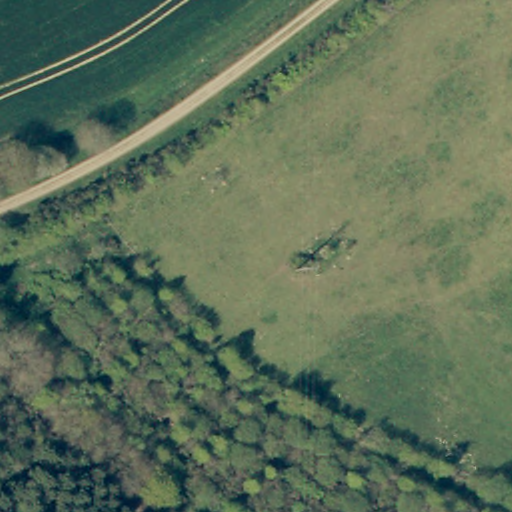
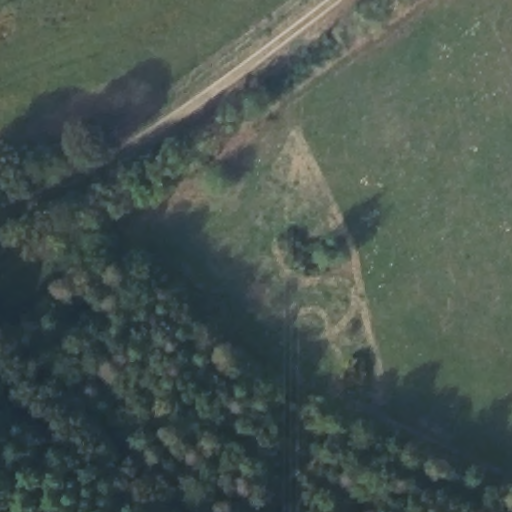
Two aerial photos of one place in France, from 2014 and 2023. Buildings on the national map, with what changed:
[]

